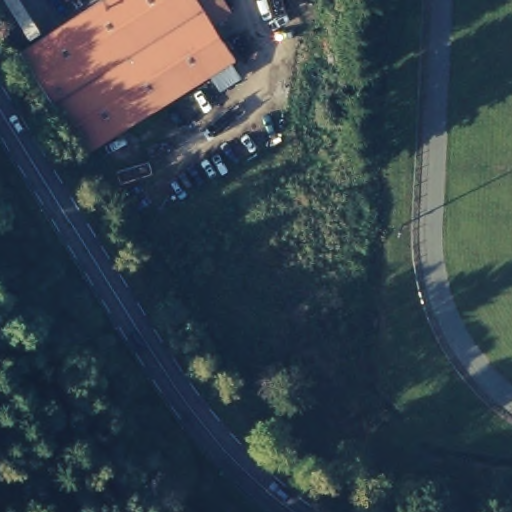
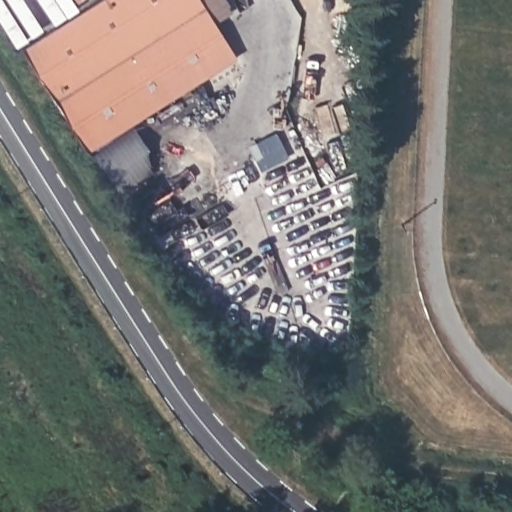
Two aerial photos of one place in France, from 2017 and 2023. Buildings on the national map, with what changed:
unchanged [(199,0),(240,58),(90,155),(20,54),(103,0),(199,0)]

